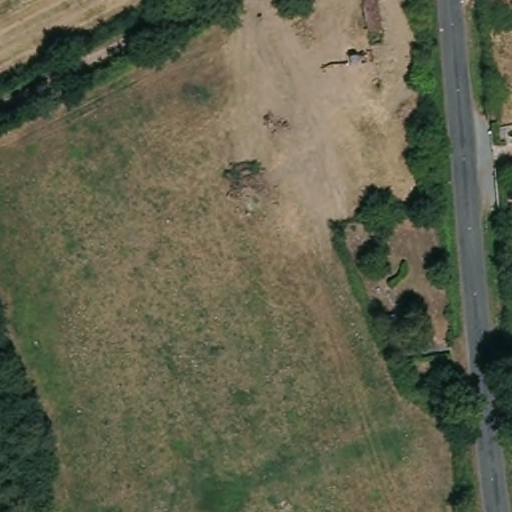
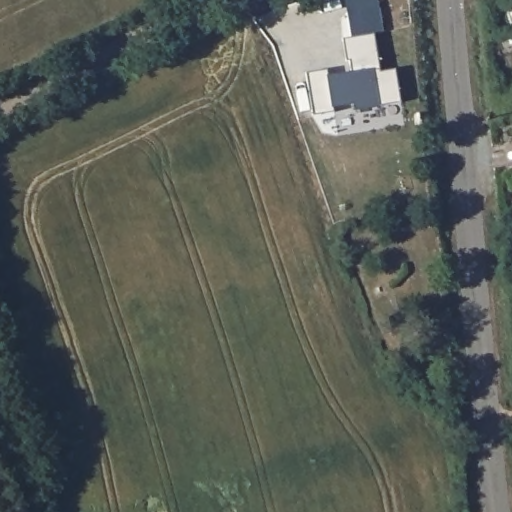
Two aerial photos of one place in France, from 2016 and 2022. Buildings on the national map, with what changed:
unchanged [(360,6),(376,3),(381,32),(382,39),(368,41),(367,28),(364,28),(360,6)]
new [(327,71),(327,74),(351,71),(350,61),(346,61),(343,40),(368,35),(368,41),(373,40),(378,73),(394,71),(400,103),(355,110),(353,104),(332,107),(333,111),(313,114),(308,74),(327,71)]

